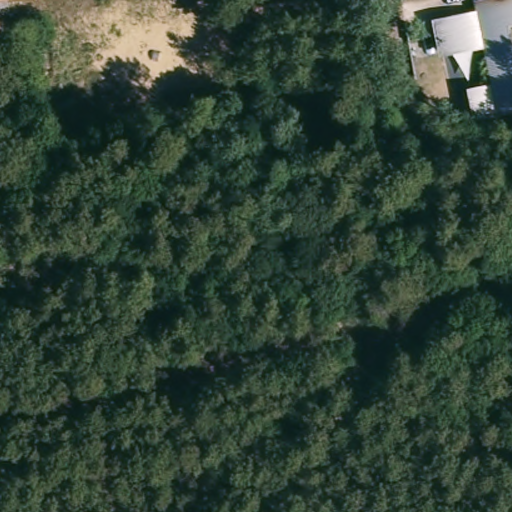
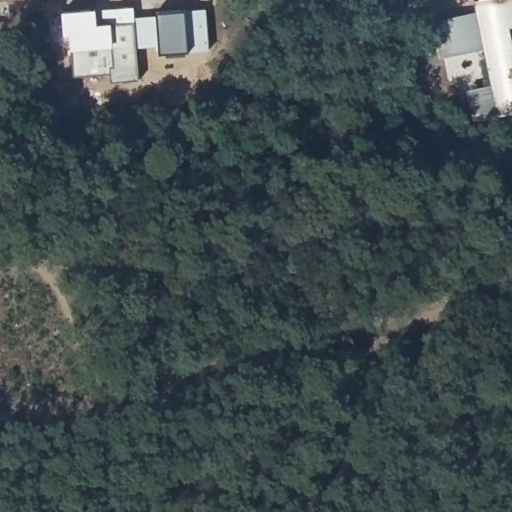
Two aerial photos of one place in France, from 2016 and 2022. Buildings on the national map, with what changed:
unchanged [(0,5),(0,0),(37,0),(37,1),(0,5)]
unchanged [(477,0),(512,0),(512,14),(509,15),(512,31),(512,119),(477,125),(473,106),(476,105),(474,98),(493,94),(485,48),(445,55),(439,27),(480,19),(477,0)]
new [(185,10),(205,10),(209,47),(188,49),(160,50),(155,11),(185,10)]
new [(137,80),(109,81),(109,73),(75,77),(71,31),(65,31),(65,14),(134,11),(137,80)]

